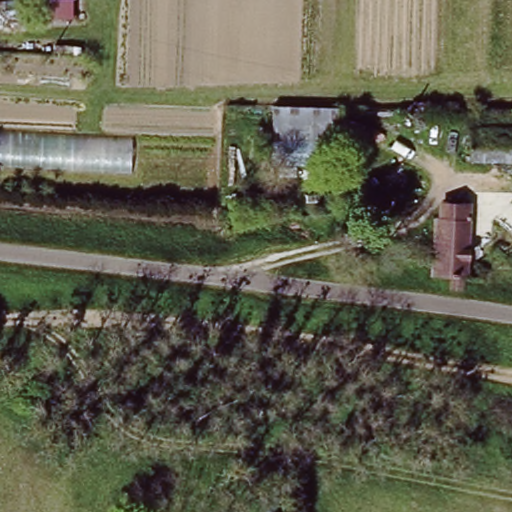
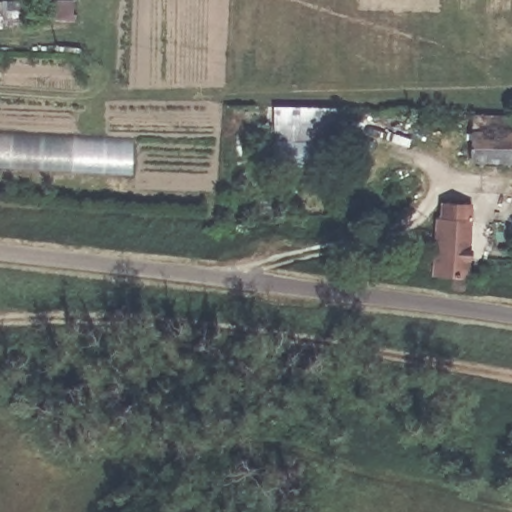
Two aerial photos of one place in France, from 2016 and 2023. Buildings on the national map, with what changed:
unchanged [(347,102),(347,125),(315,124),(314,163),(271,162),(270,100),(347,102)]
unchanged [(512,123),(512,168),(476,167),(477,120),(512,123)]
unchanged [(133,166),(0,160),(0,128),(133,135),(133,166)]
unchanged [(470,275),(460,274),(459,285),(448,285),(448,273),(432,271),(432,258),(434,220),(445,220),(445,200),(471,201),(470,261),(470,275)]

